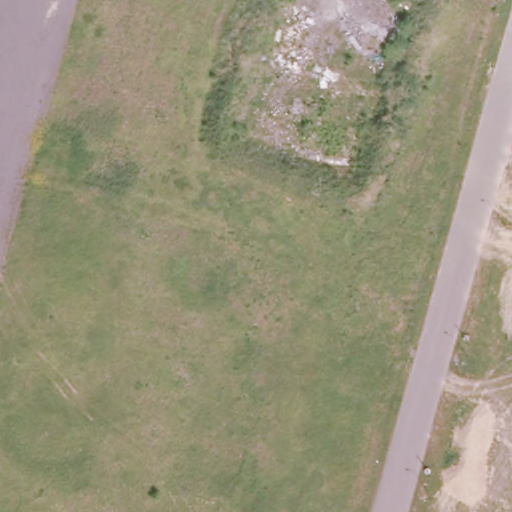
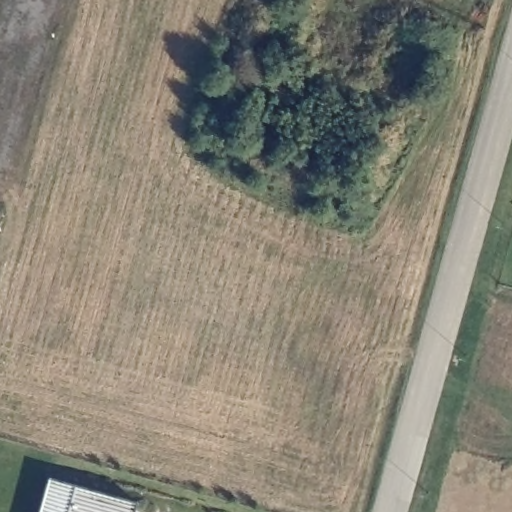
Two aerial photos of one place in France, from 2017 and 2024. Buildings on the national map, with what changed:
new [(50,479),(134,502),(131,512),(41,512),(50,479)]

